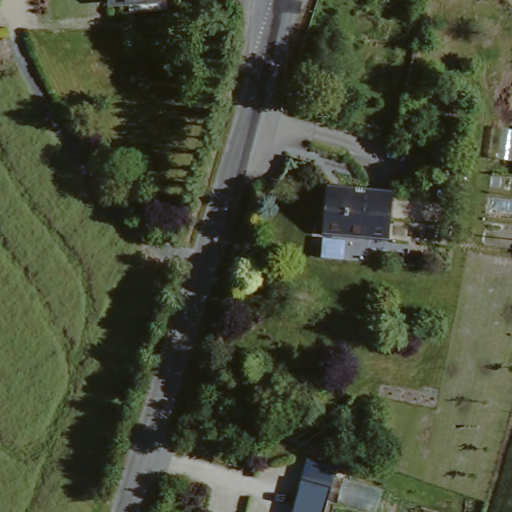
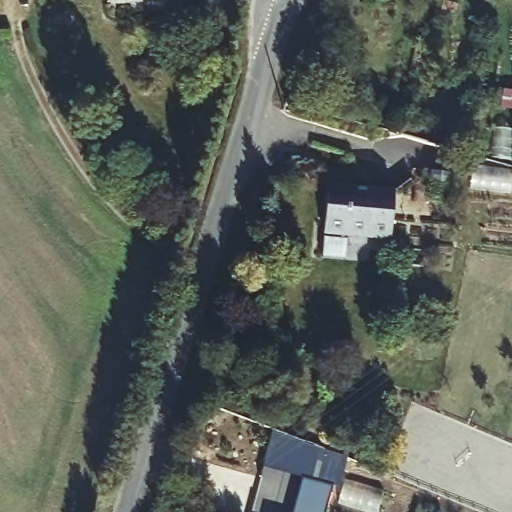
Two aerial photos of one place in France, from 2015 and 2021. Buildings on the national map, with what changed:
unchanged [(109,0),(161,0),(161,5),(110,9),(109,0)]
unchanged [(426,170),(446,172),(443,195),(423,192),(426,170)]
unchanged [(324,235),(328,189),(394,194),(390,240),(324,235)]
new [(304,480),(261,468),(271,429),(343,457),(333,487),(304,480)]
unchanged [(304,480),(333,487),(326,512),(296,512),(304,480)]

